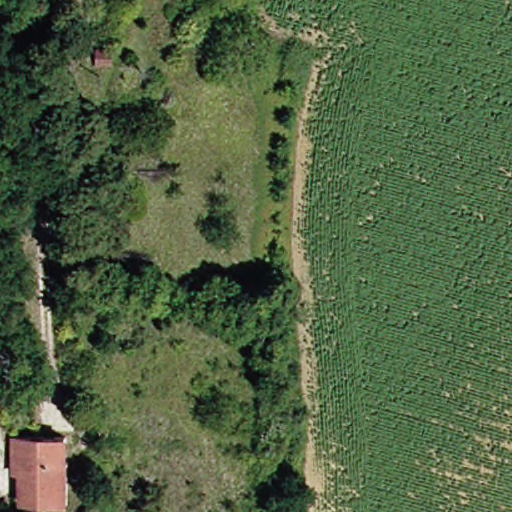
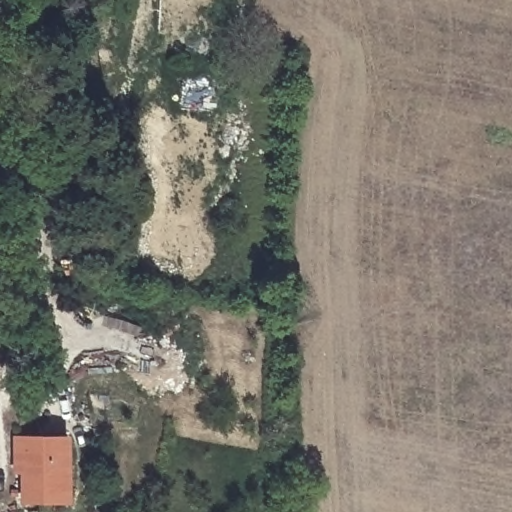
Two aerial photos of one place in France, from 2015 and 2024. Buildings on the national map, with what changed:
unchanged [(68,430),(73,512),(28,512),(27,508),(18,508),(16,433),(68,430)]

